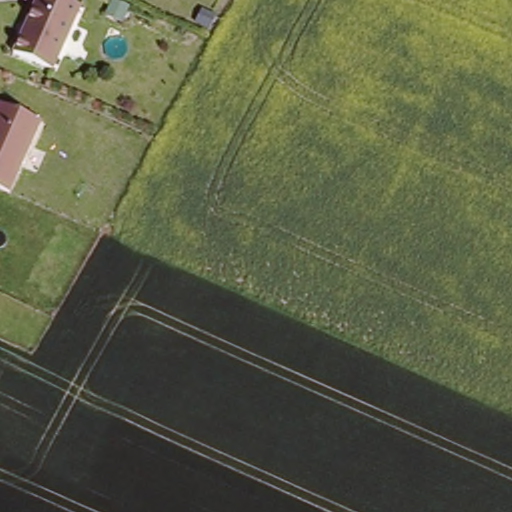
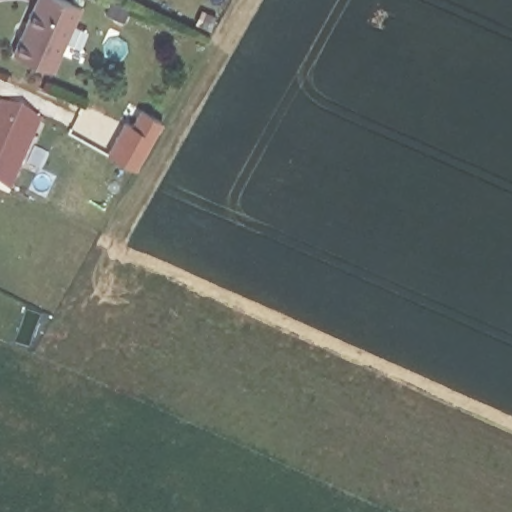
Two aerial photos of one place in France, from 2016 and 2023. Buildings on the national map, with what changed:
unchanged [(36,0),(70,0),(81,4),(56,68),(14,50),(36,0)]
unchanged [(39,119),(11,190),(0,186),(0,102),(39,119)]
new [(125,122),(131,126),(139,110),(161,122),(134,170),(107,155),(125,122)]

